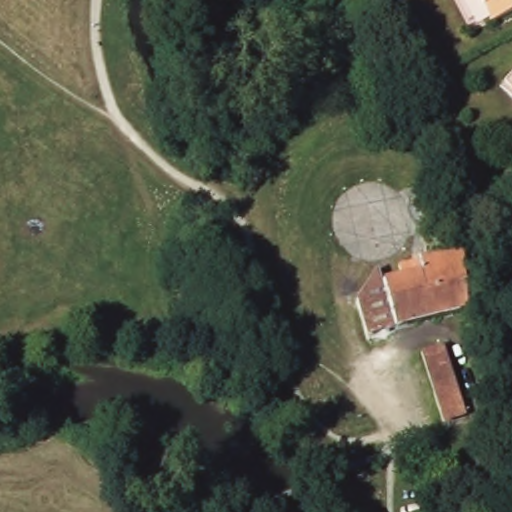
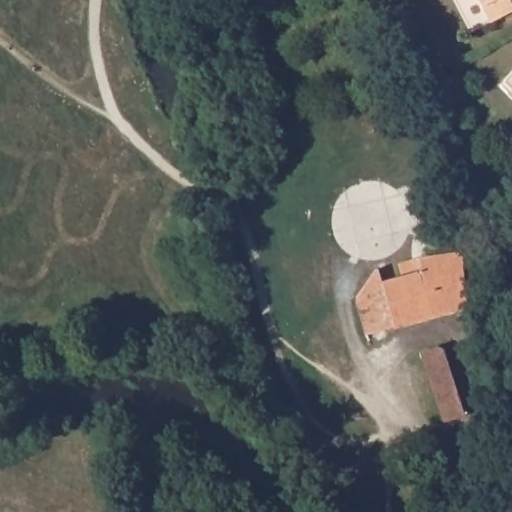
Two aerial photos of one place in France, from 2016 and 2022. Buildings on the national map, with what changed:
unchanged [(472,0),(512,0),(512,10),(485,24),(472,0)]
unchanged [(378,261),(382,276),(401,270),(398,258),(420,252),(436,249),(464,245),(472,244),(473,254),(469,255),(464,256),(469,300),(367,329),(357,293),(378,261)]
unchanged [(433,344),(441,348),(459,414),(454,416),(442,421),(419,349),(433,344)]

